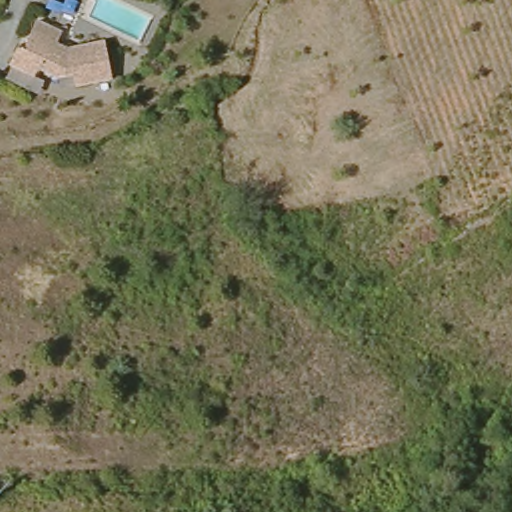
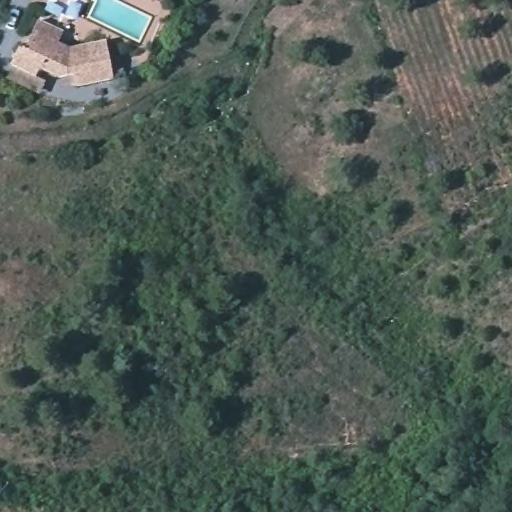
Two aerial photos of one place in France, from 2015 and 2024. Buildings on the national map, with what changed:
unchanged [(71,89),(70,77),(55,78),(35,66),(31,74),(8,60),(19,43),(24,47),(34,30),(40,20),(64,34),(57,44),(68,51),(105,49),(107,86),(71,89)]

